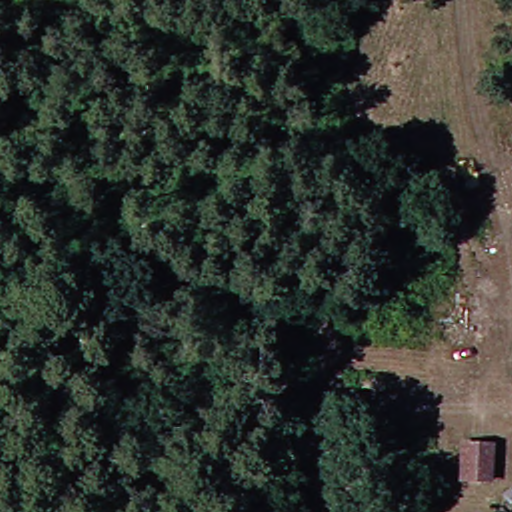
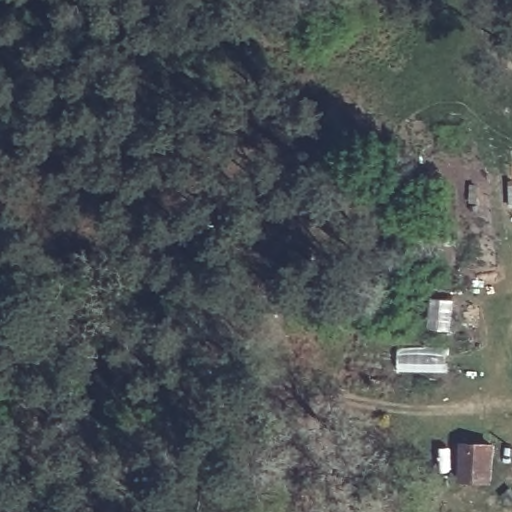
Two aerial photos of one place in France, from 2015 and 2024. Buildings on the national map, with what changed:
unchanged [(497,441),(488,480),(458,470),(467,433),(497,441)]

